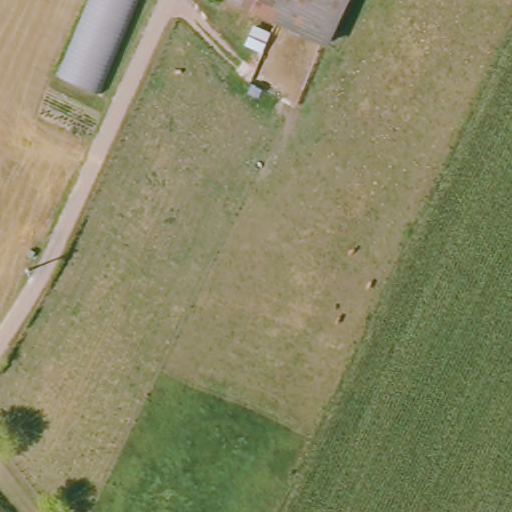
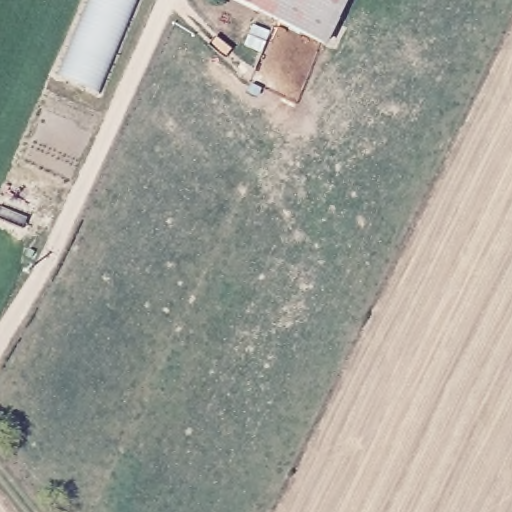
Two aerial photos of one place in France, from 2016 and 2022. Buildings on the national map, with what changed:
unchanged [(61,78),(93,0),(134,0),(95,92),(61,78)]
unchanged [(238,0),(350,0),(327,45),(238,0)]

